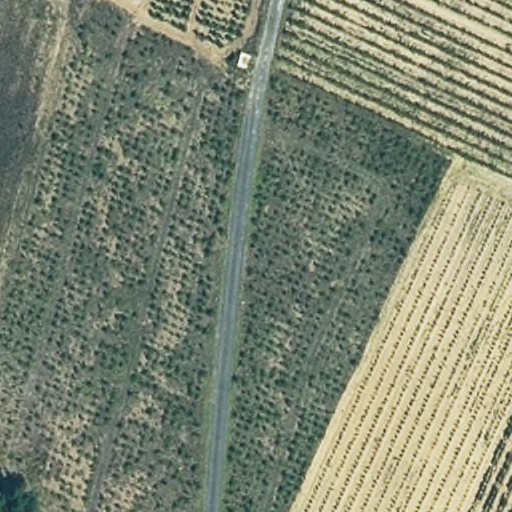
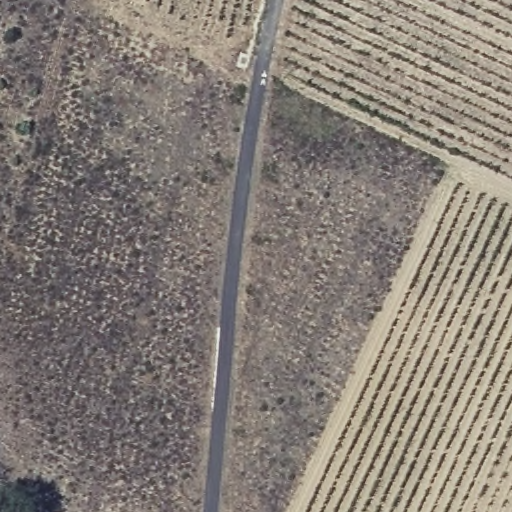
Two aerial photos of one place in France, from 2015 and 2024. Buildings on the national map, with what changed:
unchanged [(240,50),(249,54),(245,65),(237,61),(240,50)]

